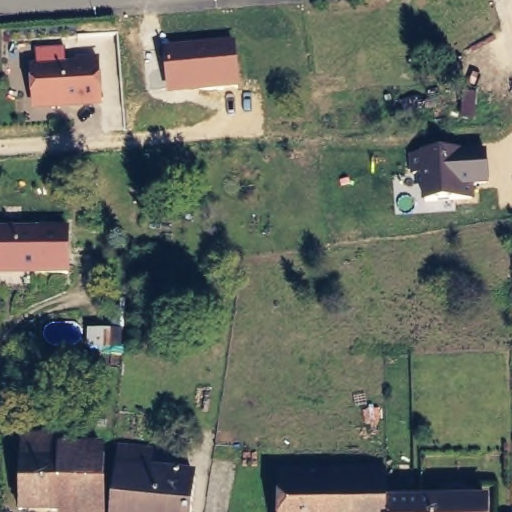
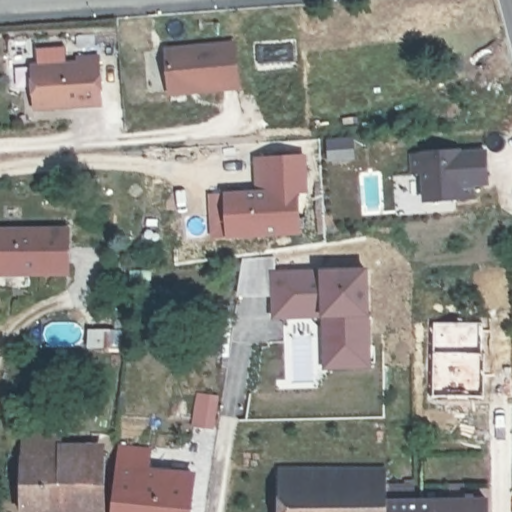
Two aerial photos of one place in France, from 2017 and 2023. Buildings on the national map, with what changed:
unchanged [(170,96),(164,48),(235,42),(240,89),(170,96)]
unchanged [(74,63),(73,55),(100,54),(105,107),(32,110),(30,65),(74,63)]
unchanged [(422,201),(420,174),(410,174),(408,152),(487,148),(490,185),(471,186),(472,201),(422,201)]
new [(227,239),(223,192),(255,189),(253,158),(306,154),(309,192),(300,193),(302,234),(227,239)]
unchanged [(65,275),(28,277),(28,272),(0,273),(0,235),(64,233),(65,275)]
new [(322,371),(321,317),(272,319),(270,297),(238,297),(242,258),(275,257),(276,270),(319,269),(368,266),(370,316),(372,368),(322,371)]
unchanged [(88,348),(88,328),(123,328),(122,350),(88,348)]
unchanged [(52,431),(52,452),(103,453),(102,509),(17,505),(20,432),(52,431)]
unchanged [(147,451),(142,469),(191,474),(187,512),(109,512),(115,446),(147,451)]
unchanged [(385,486),(386,512),(280,512),(280,474),(365,472),(365,466),(370,465),(370,473),(385,473),(385,486)]
unchanged [(385,486),(402,486),(403,502),(455,501),(455,497),(475,497),(475,501),(490,501),(490,512),(386,512),(385,486)]

